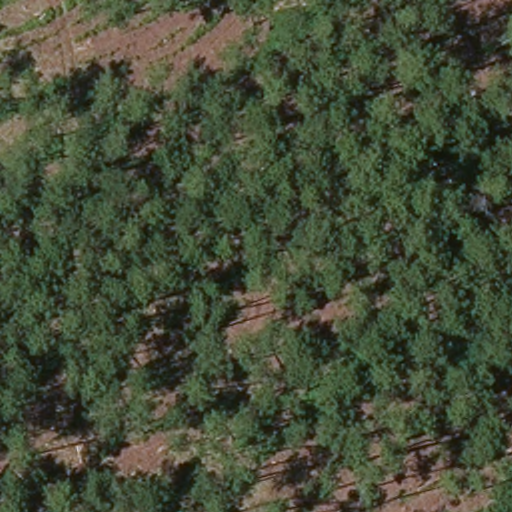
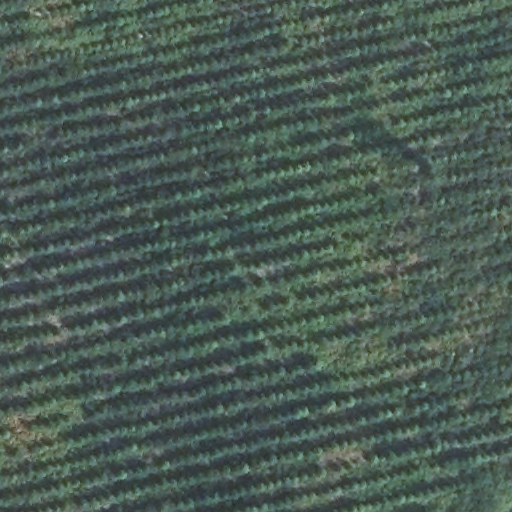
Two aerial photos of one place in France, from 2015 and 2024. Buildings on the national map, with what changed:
[]

